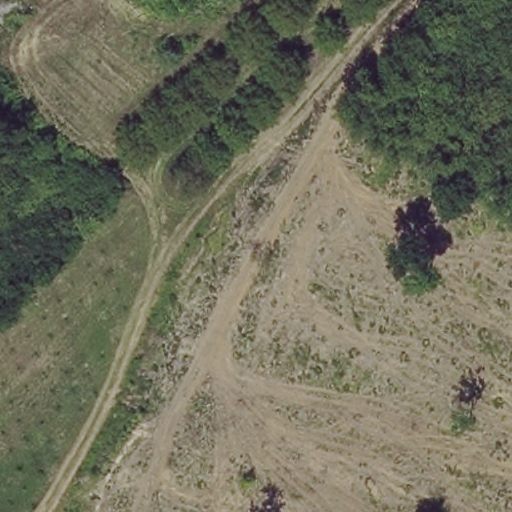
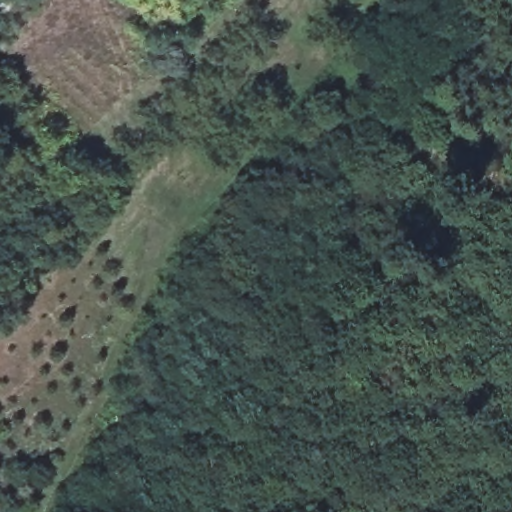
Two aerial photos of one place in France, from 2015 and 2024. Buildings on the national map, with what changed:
[]

